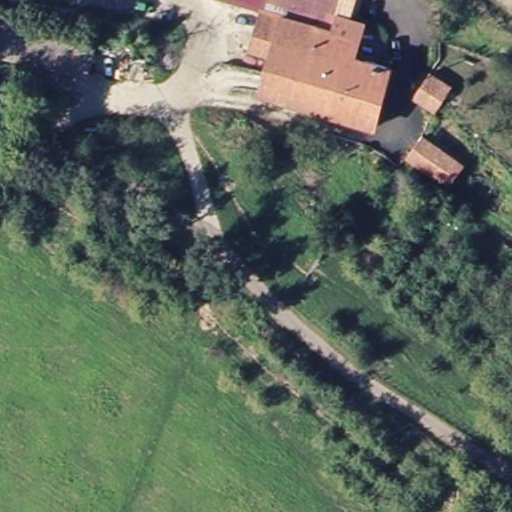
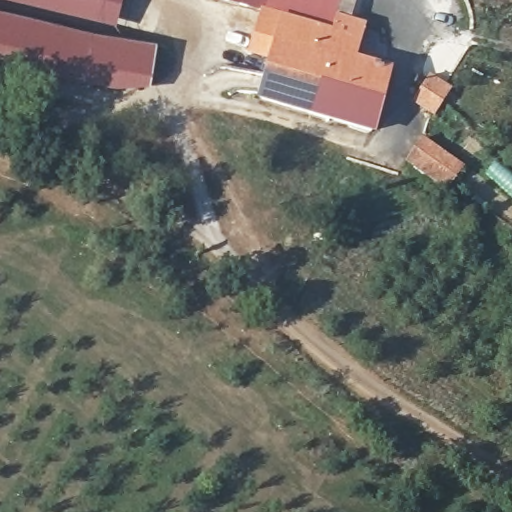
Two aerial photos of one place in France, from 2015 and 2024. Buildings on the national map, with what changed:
new [(117,28),(0,4),(0,0),(123,0),(117,28)]
unchanged [(334,17),(363,26),(354,56),(391,67),(372,133),(257,97),(265,72),(247,66),(258,31),(201,14),(205,0),(339,0),(334,17)]
new [(121,92),(75,86),(0,65),(0,15),(84,38),(155,48),(146,90),(121,92)]
unchanged [(428,72),(448,85),(432,114),(411,101),(428,72)]
unchanged [(448,190),(405,169),(417,145),(459,166),(448,190)]

